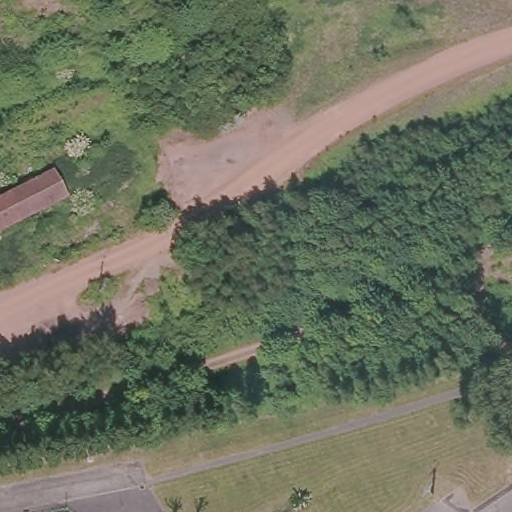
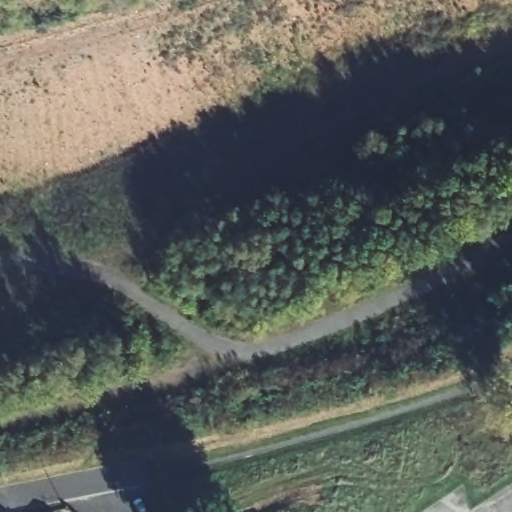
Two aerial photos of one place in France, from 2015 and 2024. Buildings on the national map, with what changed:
demolished [(0,240),(0,204),(53,176),(68,205),(0,240)]

